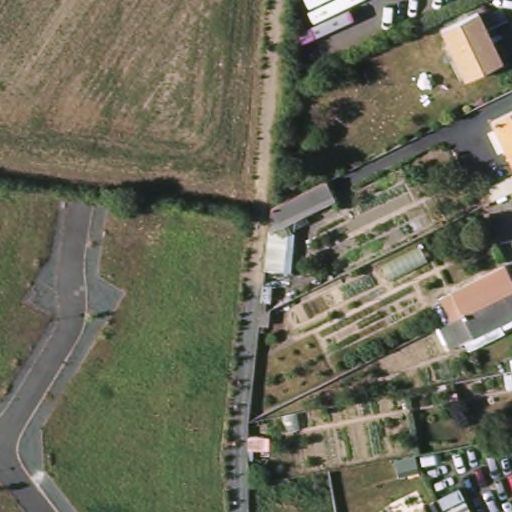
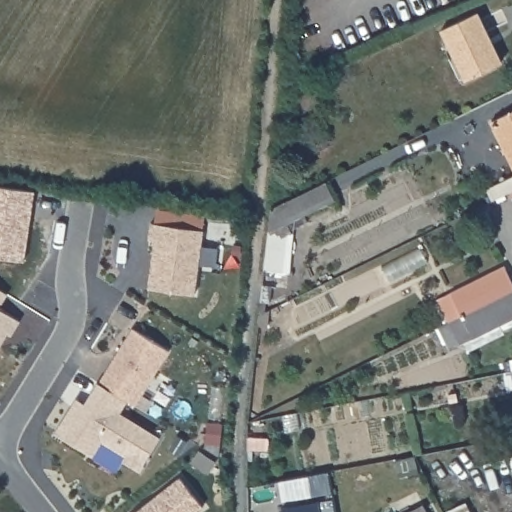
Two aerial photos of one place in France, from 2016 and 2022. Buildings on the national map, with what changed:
unchanged [(508,62),(471,80),(446,30),(483,12),(508,62)]
unchanged [(497,122),(512,115),(512,153),(497,122)]
unchanged [(497,201),(492,190),(512,180),(512,193),(497,201)]
unchanged [(291,295),(294,301),(274,310),(273,326),(263,325),(264,315),(267,285),(274,231),(276,208),(331,181),(340,199),(289,224),(293,233),(298,233),(295,272),(288,272),(286,288),(277,287),(275,303),(291,295)]
new [(155,240),(150,239),(151,222),(204,229),(196,293),(149,287),(155,240)]
unchanged [(443,300),(510,267),(512,271),(512,294),(454,322),(443,300)]
unchanged [(512,294),(512,322),(454,350),(443,328),(454,322),(512,294)]
new [(13,337),(10,335),(5,344),(0,351),(0,309),(23,322),(13,337)]
new [(123,460),(125,455),(103,440),(92,455),(55,433),(76,398),(85,403),(99,381),(132,328),(169,351),(137,405),(129,400),(121,412),(161,437),(141,471),(123,460)]
unchanged [(268,450),(248,450),(248,437),(269,438),(268,450)]
new [(333,454),(337,474),(316,478),(288,483),(284,463),(313,458),(333,454)]
new [(205,507),(198,512),(135,512),(180,477),(205,507)]
new [(323,482),(329,512),(291,512),(287,489),(323,482)]
unchanged [(422,512),(404,512),(418,505),(422,512)]

